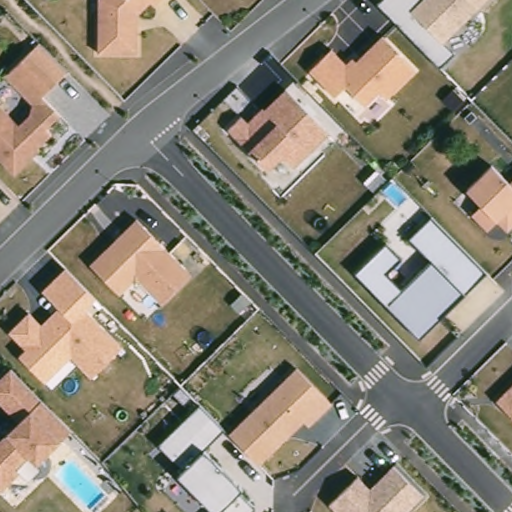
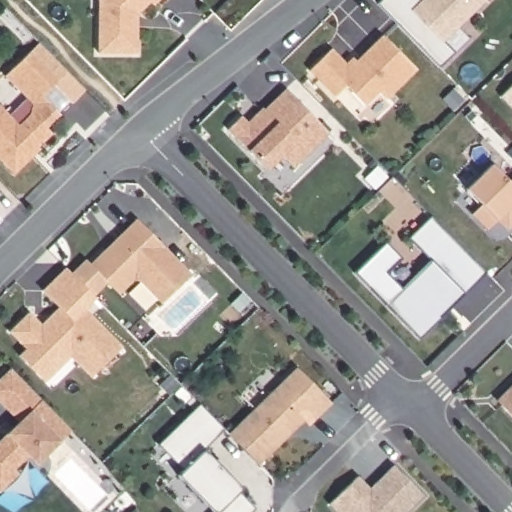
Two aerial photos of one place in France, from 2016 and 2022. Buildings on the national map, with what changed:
unchanged [(141,56),(98,51),(97,0),(160,0),(144,16),(141,56)]
unchanged [(490,0),(469,22),(479,34),(440,70),(381,3),(384,0),(490,0)]
unchanged [(333,51),(350,67),(380,36),(417,71),(387,99),(375,89),(361,102),(346,84),(334,95),(311,71),(333,51)]
unchanged [(0,160),(0,103),(1,102),(19,122),(34,108),(2,76),(28,55),(59,86),(47,98),(65,116),(50,131),(56,136),(12,175),(0,160)]
unchanged [(329,132),(292,167),(281,154),(264,172),(226,128),(243,114),(251,122),(288,86),(329,132)]
unchanged [(481,204),(465,189),(490,163),(511,183),(512,182),(512,224),(504,231),(495,221),(486,231),(469,215),(481,204)]
unchanged [(158,304),(134,280),(117,296),(86,266),(138,217),(195,277),(158,304)]
unchanged [(354,274),(384,242),(398,258),(384,272),(400,290),(430,261),(410,239),(430,218),(484,272),(461,297),(417,339),(354,274)]
unchanged [(92,378),(73,359),(45,383),(20,356),(25,348),(7,331),(31,309),(44,321),(57,308),(43,290),(66,267),(102,304),(90,316),(122,344),(92,378)]
unchanged [(227,434),(295,367),(330,405),(307,428),(301,421),(258,463),(227,434)]
unchanged [(17,418),(0,400),(0,376),(8,369),(74,428),(42,466),(30,458),(0,491),(0,436),(17,418)]
unchanged [(512,383),(512,418),(495,401),(512,383)]
unchanged [(214,512),(177,475),(182,469),(158,445),(199,406),(221,429),(201,452),(239,491),(237,493),(253,510),(251,512),(214,512)]
unchanged [(328,504),(355,475),(368,488),(391,465),(422,497),(407,512),(337,512),(328,504)]

